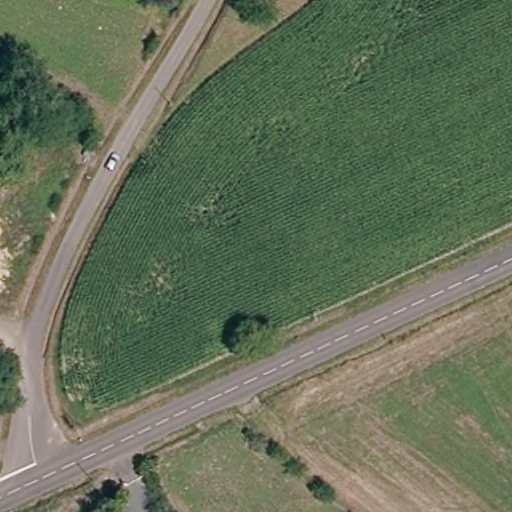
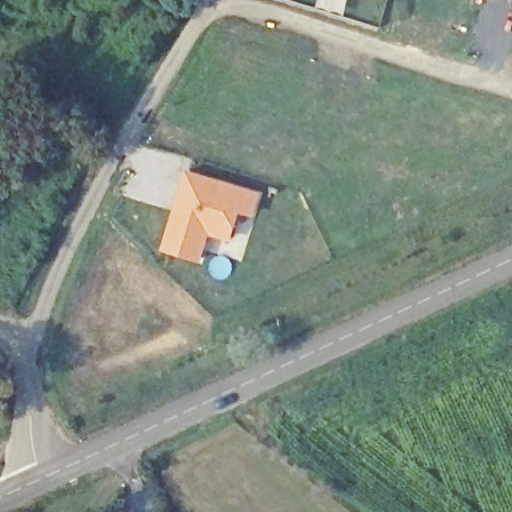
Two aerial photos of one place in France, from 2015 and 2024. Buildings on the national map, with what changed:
new [(188,174),(258,194),(252,214),(237,209),(229,238),(207,231),(198,259),(165,248),(188,174)]

